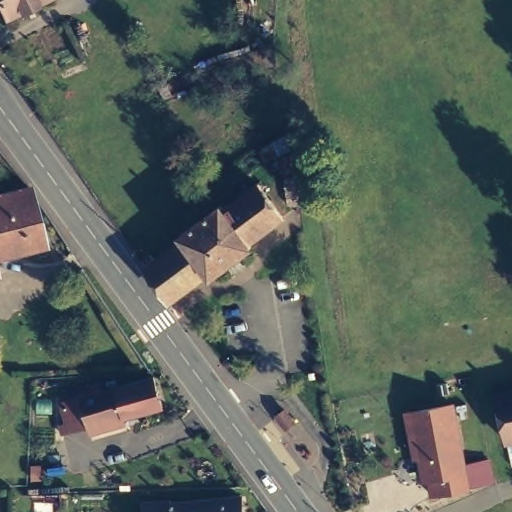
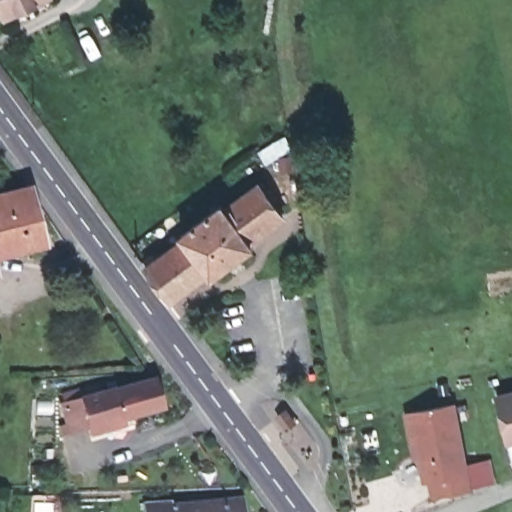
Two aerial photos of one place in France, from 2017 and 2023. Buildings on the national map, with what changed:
unchanged [(0,15),(0,0),(38,0),(1,18),(0,15)]
unchanged [(141,263),(143,261),(139,255),(146,249),(150,255),(179,234),(176,230),(217,200),(220,204),(255,179),(279,212),(244,237),(247,241),(207,272),(204,268),(165,296),(141,263)]
unchanged [(25,188),(39,243),(0,253),(0,193),(25,188)]
unchanged [(127,424),(125,417),(97,424),(99,432),(93,434),(91,427),(72,432),(64,403),(83,398),(81,389),(90,387),(92,394),(154,378),(164,407),(134,414),(136,422),(127,424)]
unchanged [(488,390),(512,384),(512,459),(504,461),(488,390)]
unchanged [(485,483),(459,488),(460,489),(424,496),(420,479),(415,481),(411,457),(406,458),(398,413),(402,413),(444,404),(456,468),(481,463),(485,483)]
unchanged [(278,416),(286,411),(295,423),(287,429),(278,416)]
unchanged [(134,504),(161,501),(162,504),(231,497),(233,512),(134,512),(134,504)]

